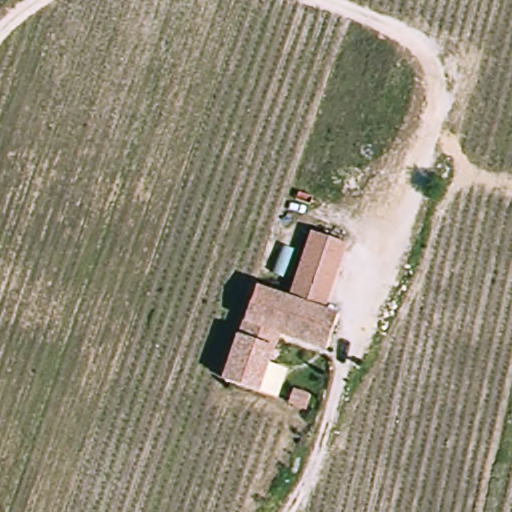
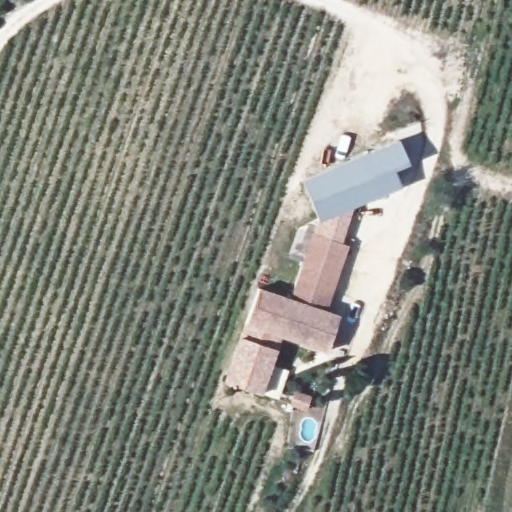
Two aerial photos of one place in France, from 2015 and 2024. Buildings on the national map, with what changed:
new [(397,139),(407,164),(392,171),(400,186),(317,222),(301,180),(397,139)]
unchanged [(327,308),(341,313),(327,350),(282,335),(274,364),(289,370),(279,397),(262,395),(225,380),(261,286),(291,297),(314,231),(350,244),(327,308)]
new [(310,397),(306,409),(291,404),(295,392),(310,397)]

